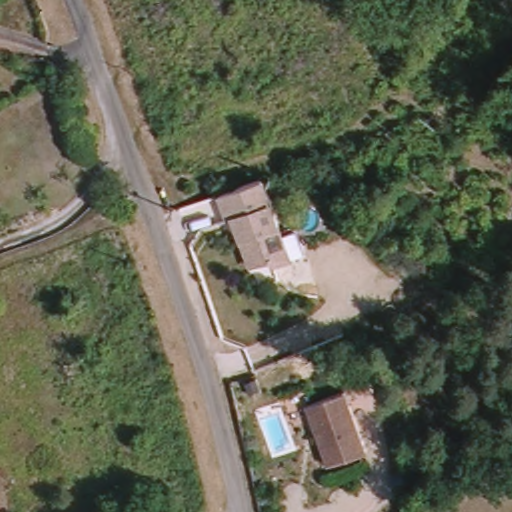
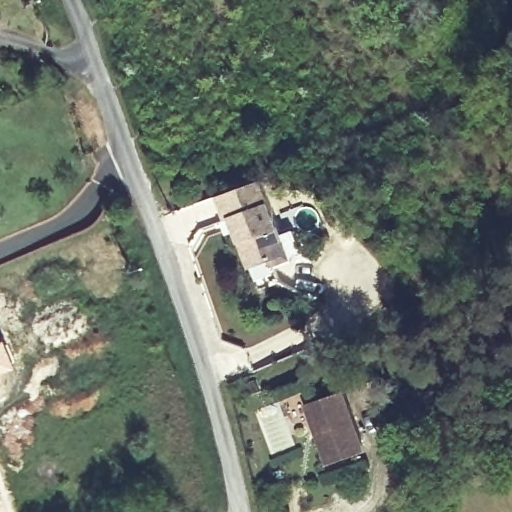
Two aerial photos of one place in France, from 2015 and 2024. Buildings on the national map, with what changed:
unchanged [(290,263),(272,269),(277,287),(257,294),(233,222),(228,223),(220,199),(263,184),(290,263)]
new [(5,333),(15,364),(0,370),(0,335),(5,333)]
unchanged [(361,451),(323,464),(312,432),(315,430),(313,422),(308,420),(302,405),(340,392),(361,451)]

